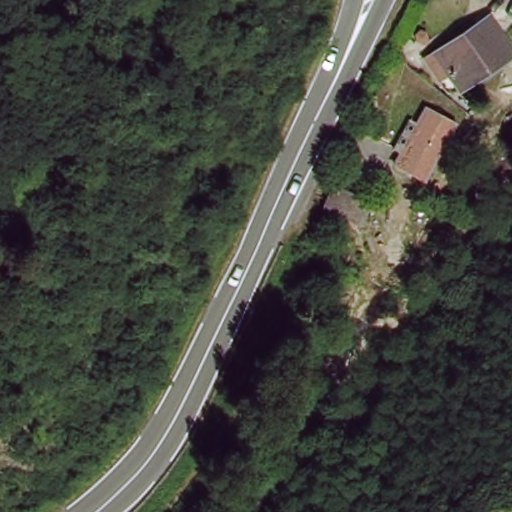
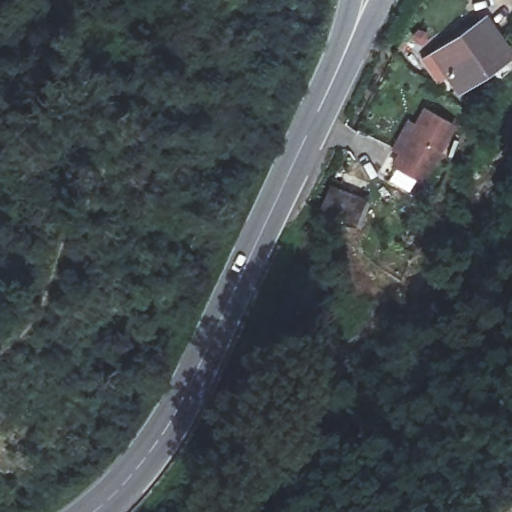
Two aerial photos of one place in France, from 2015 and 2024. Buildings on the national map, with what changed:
unchanged [(425,59),(491,20),(511,52),(447,92),(425,59)]
unchanged [(387,168),(417,108),(444,121),(413,181),(387,168)]
unchanged [(369,205),(360,232),(352,229),(317,216),(332,184),(353,196),(369,205)]

